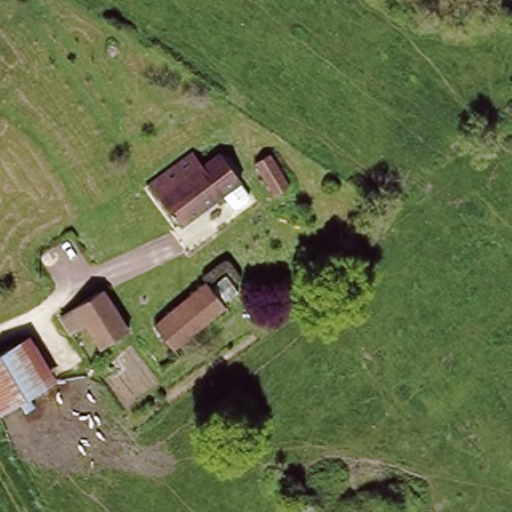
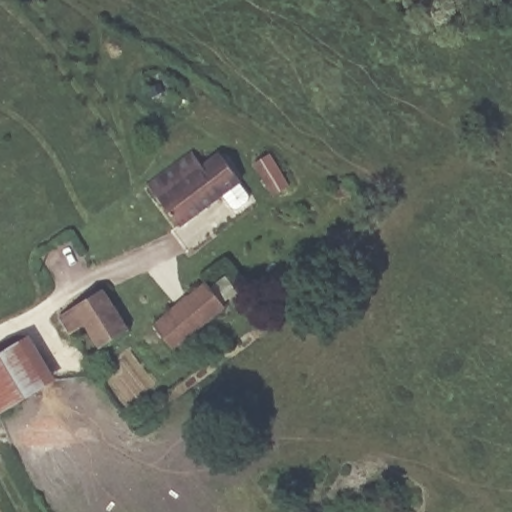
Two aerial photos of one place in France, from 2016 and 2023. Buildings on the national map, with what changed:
unchanged [(250,212),(239,217),(234,216),(226,201),(182,225),(170,203),(159,209),(145,182),(195,156),(200,164),(224,151),(245,191),(244,192),(251,206),(250,212)]
unchanged [(300,187),(277,202),(260,177),(284,162),(300,187)]
unchanged [(241,291),(184,326),(191,337),(175,347),(152,320),(225,265),(241,291)]
unchanged [(127,335),(102,348),(92,331),(75,340),(64,320),(106,297),(127,335)]
unchanged [(0,414),(0,358),(27,343),(52,384),(0,414)]

